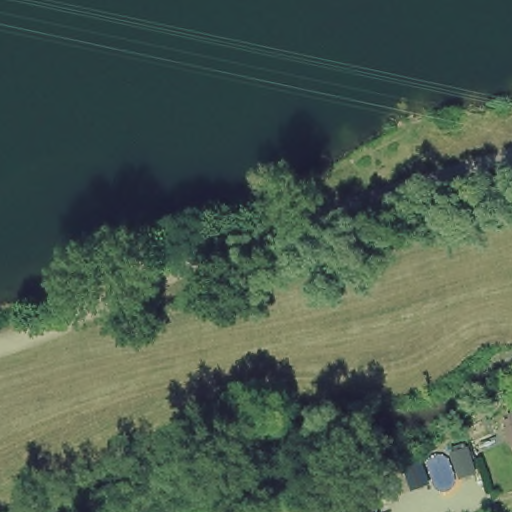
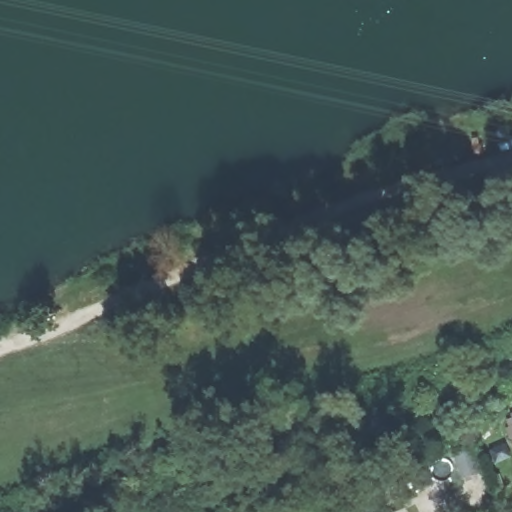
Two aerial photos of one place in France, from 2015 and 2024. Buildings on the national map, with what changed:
unchanged [(452,486),(446,457),(466,452),(476,478),(452,486)]

